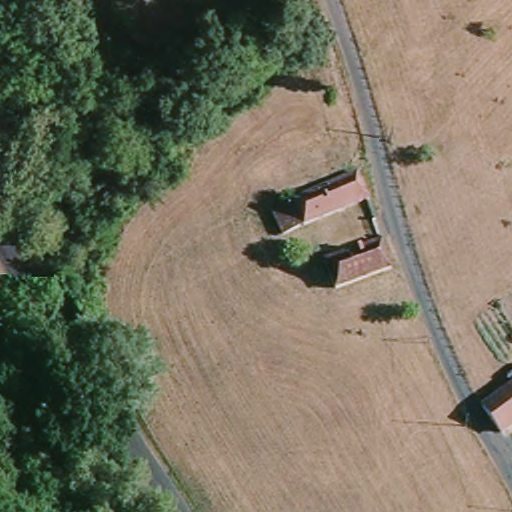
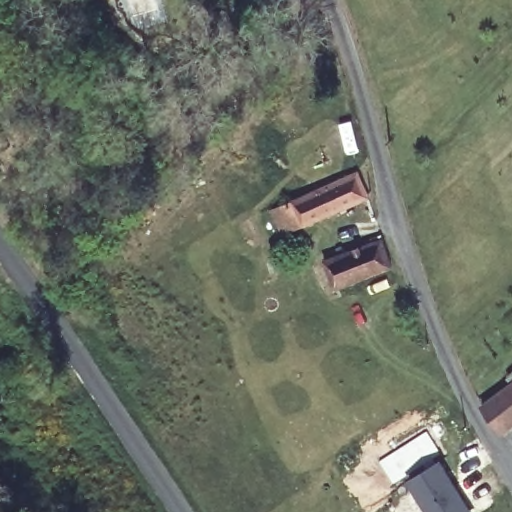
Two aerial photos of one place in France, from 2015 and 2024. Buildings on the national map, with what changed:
unchanged [(357,173),(364,197),(283,235),(271,209),(357,173)]
unchanged [(334,290),(322,261),(379,238),(390,269),(334,290)]
unchanged [(502,434),(482,405),(512,383),(512,427),(502,434)]
new [(408,479),(441,461),(471,512),(427,512),(408,479)]

